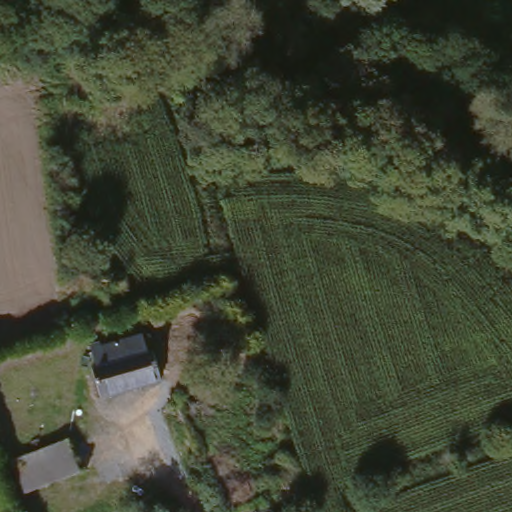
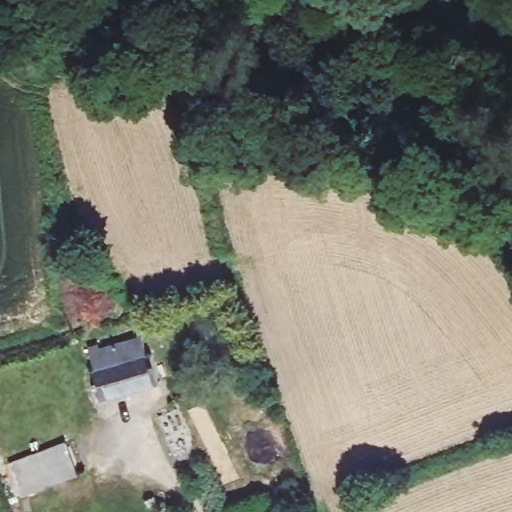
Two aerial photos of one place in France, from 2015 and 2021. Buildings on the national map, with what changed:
unchanged [(96,409),(87,380),(92,380),(86,360),(138,346),(144,363),(150,361),(159,392),(96,409)]
unchanged [(19,498),(8,466),(62,447),(74,480),(19,498)]
unchanged [(297,511),(297,512),(294,512),(297,511)]

